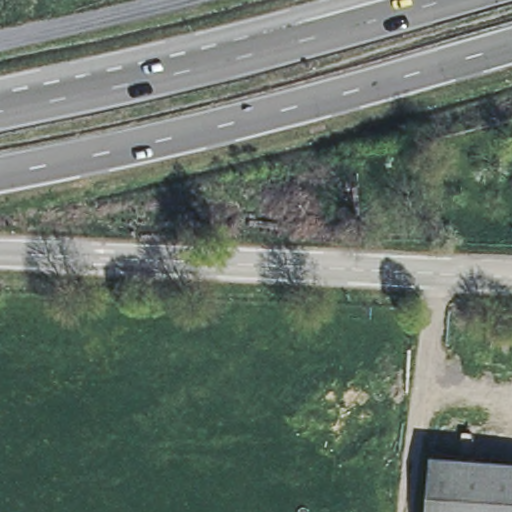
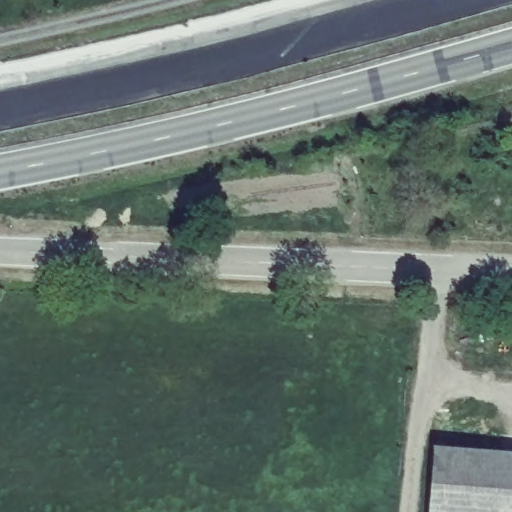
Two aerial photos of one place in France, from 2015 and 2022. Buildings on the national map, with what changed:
unchanged [(435,445),(512,453),(512,512),(431,512),(435,445)]

